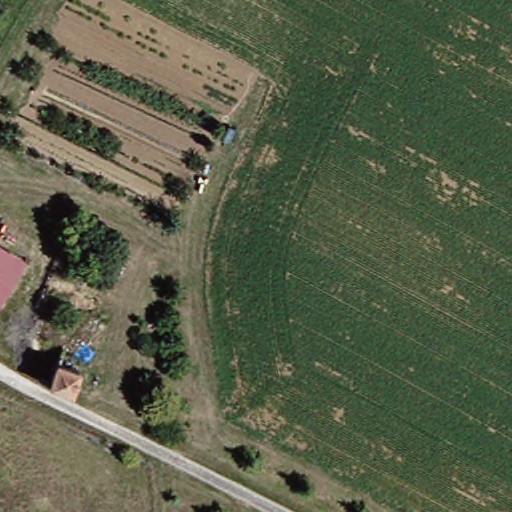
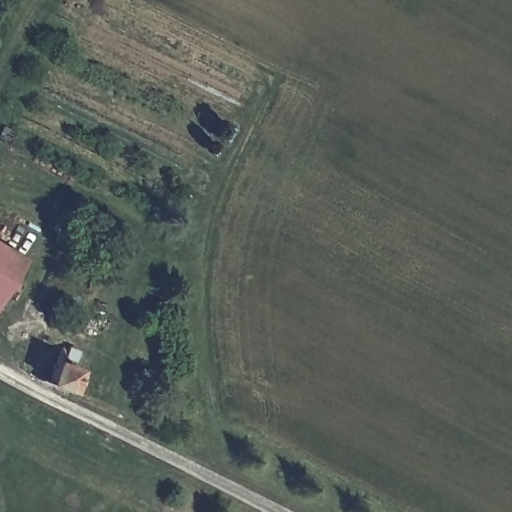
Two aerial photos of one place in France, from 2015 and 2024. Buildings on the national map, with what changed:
unchanged [(25,260),(0,299),(0,245),(25,260)]
unchanged [(86,364),(77,392),(51,377),(58,355),(86,364)]

